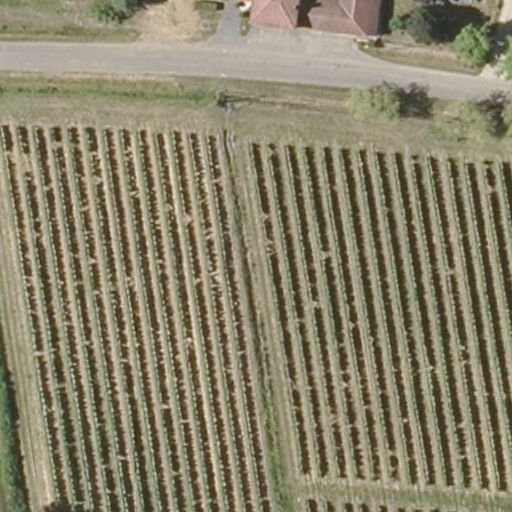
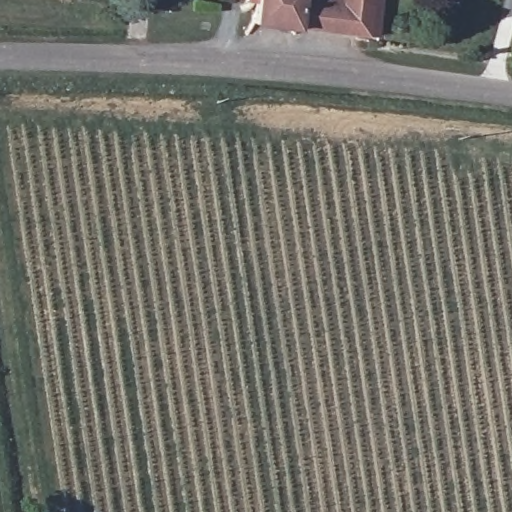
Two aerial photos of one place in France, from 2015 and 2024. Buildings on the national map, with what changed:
unchanged [(255,7),(246,6),(246,0),(304,0),(298,34),(252,26),(255,7)]
unchanged [(298,34),(304,0),(384,0),(379,44),(298,34)]

